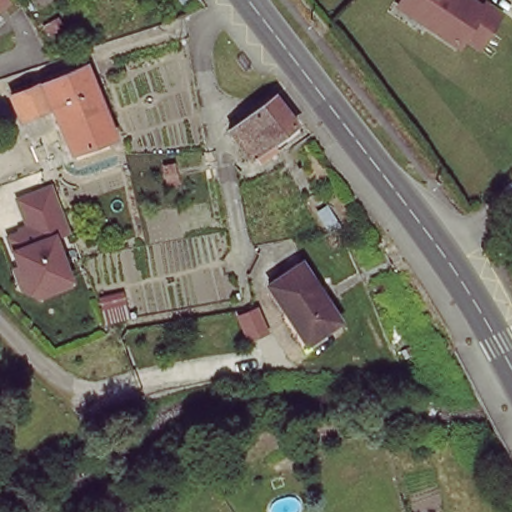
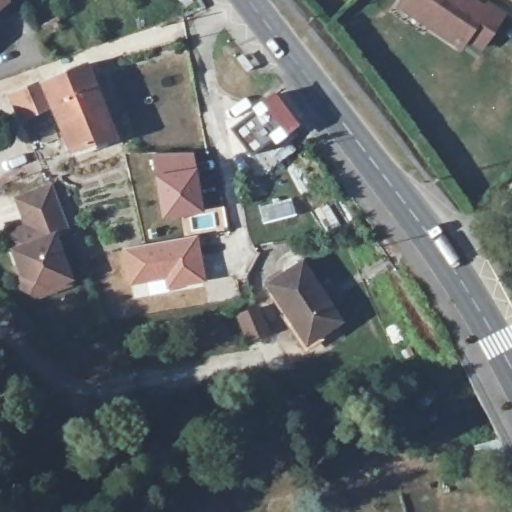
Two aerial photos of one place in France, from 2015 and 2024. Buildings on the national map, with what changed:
unchanged [(479,49),(465,38),(458,46),(429,25),(432,23),(402,0),(472,0),(485,9),(488,5),(503,16),(479,49)]
unchanged [(97,81),(107,105),(115,132),(77,149),(75,144),(68,147),(58,125),(35,135),(16,91),(67,70),(90,61),(97,81)]
unchanged [(251,159),(228,131),(275,96),(296,124),(251,159)]
new [(193,151),(202,213),(160,220),(150,154),(193,151)]
unchanged [(20,225),(10,194),(49,182),(69,228),(56,233),(72,283),(43,296),(15,288),(2,231),(20,225)]
new [(197,234),(205,282),(132,298),(119,247),(197,234)]
unchanged [(340,318),(305,342),(267,286),(301,263),(340,318)]
new [(257,304),(270,333),(247,344),(233,316),(257,304)]

